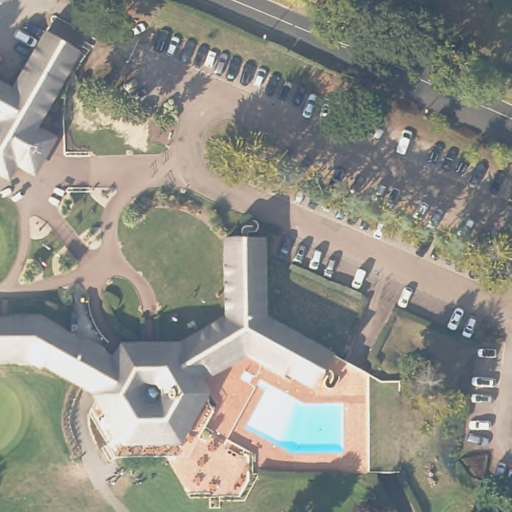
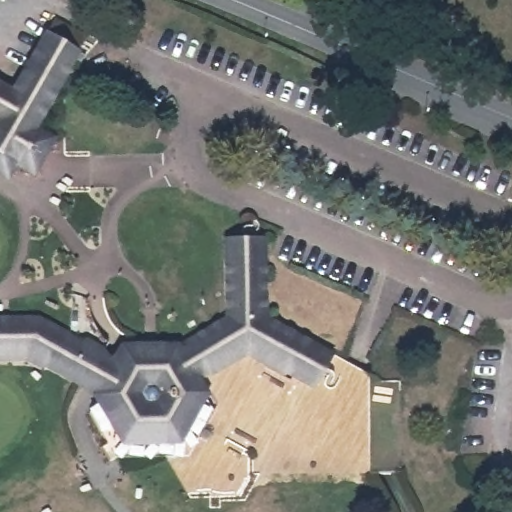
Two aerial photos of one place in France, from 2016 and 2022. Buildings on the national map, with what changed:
unchanged [(32,173),(15,164),(14,167),(7,179),(0,175),(0,90),(10,96),(50,25),(83,43),(46,108),(31,134),(48,144),(43,153),(32,173)]
unchanged [(121,350),(133,350),(175,350),(224,320),(225,237),(263,238),(263,315),(330,355),(313,385),(246,347),(193,381),(204,401),(175,445),(121,445),(91,398),(94,393),(24,354),(0,354),(0,316),(35,316),(99,353),(114,363),(121,350)]

